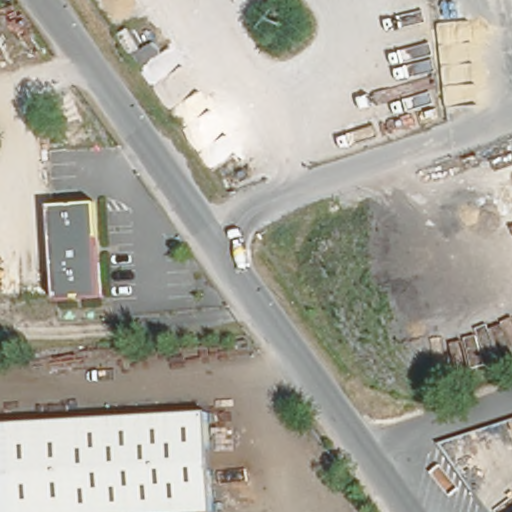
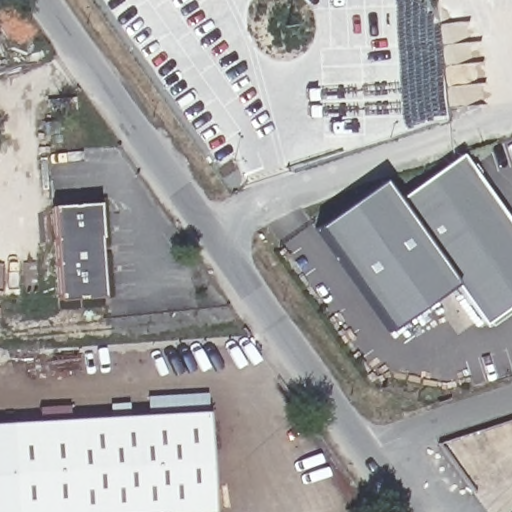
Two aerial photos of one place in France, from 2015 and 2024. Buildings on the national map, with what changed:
new [(380,181),(393,201),(452,159),(460,156),(512,229),(512,301),(480,323),(452,283),(386,331),(312,228),(380,181)]
unchanged [(50,205),(92,202),(99,291),(58,293),(54,251),(50,205)]
unchanged [(210,509),(170,512),(0,512),(0,422),(202,407),(210,509)]

